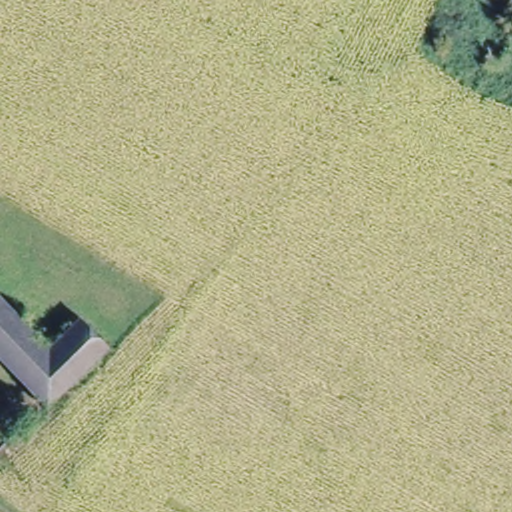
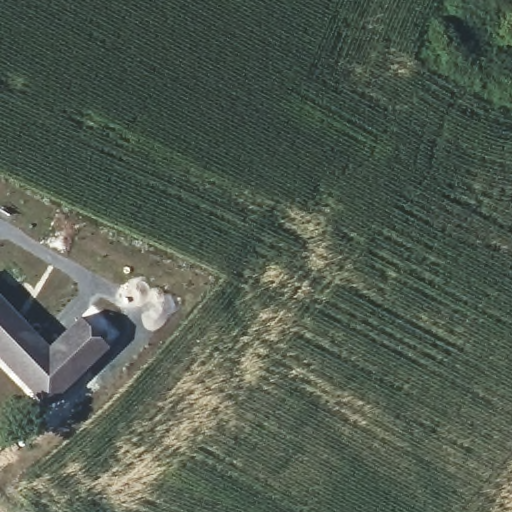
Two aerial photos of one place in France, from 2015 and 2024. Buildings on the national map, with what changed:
unchanged [(0,304),(50,351),(77,326),(105,353),(47,407),(0,360),(0,304)]

